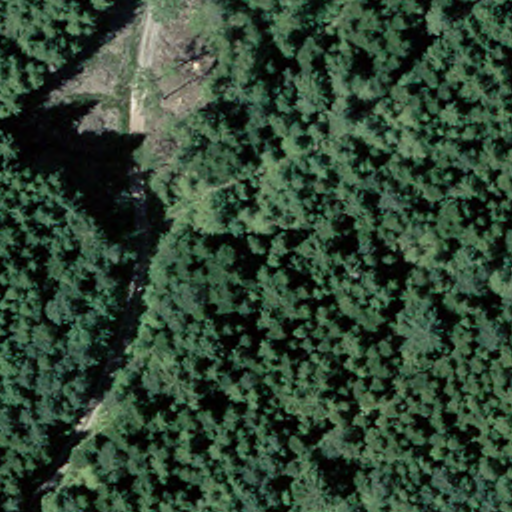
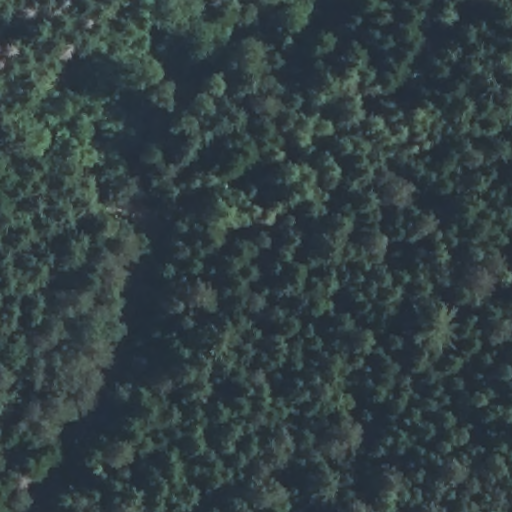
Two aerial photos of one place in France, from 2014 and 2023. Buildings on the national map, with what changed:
[]

